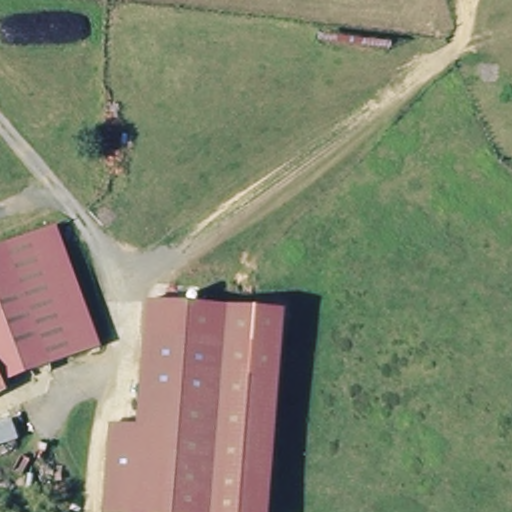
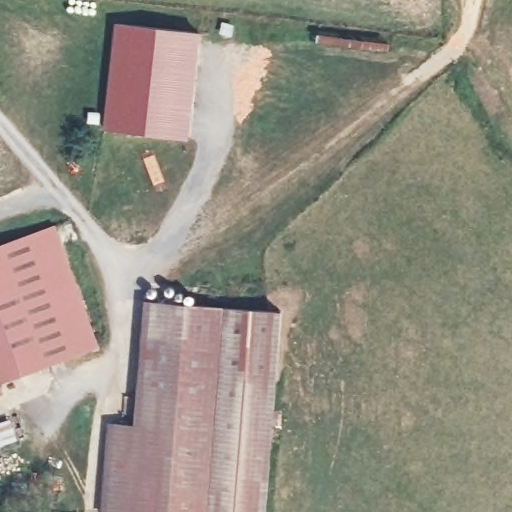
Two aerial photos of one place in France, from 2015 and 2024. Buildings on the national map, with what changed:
new [(202,34),(191,139),(103,130),(114,25),(202,34)]
unchanged [(56,227),(99,343),(0,376),(0,246),(56,227)]
unchanged [(225,345),(145,338),(147,305),(272,315),(284,316),(277,391),(272,459),(271,471),(268,512),(210,512),(220,391),(225,345)]
unchanged [(137,429),(140,391),(145,338),(225,345),(220,391),(210,512),(103,512),(111,428),(137,429)]

